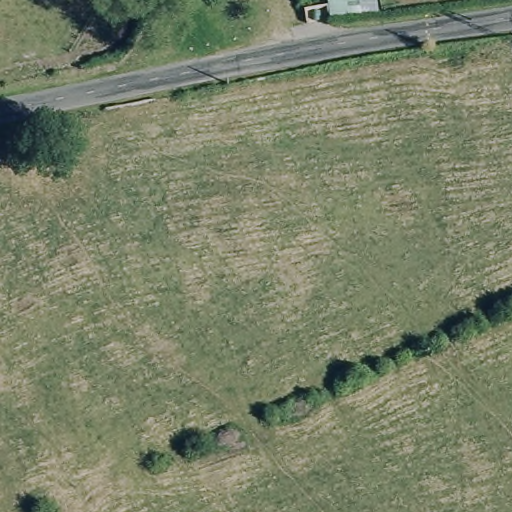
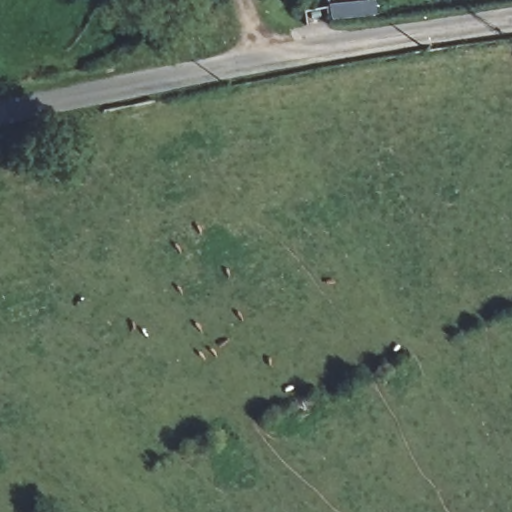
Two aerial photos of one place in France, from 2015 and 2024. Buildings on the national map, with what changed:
unchanged [(309,21),(306,10),(329,4),(332,15),(309,21)]

